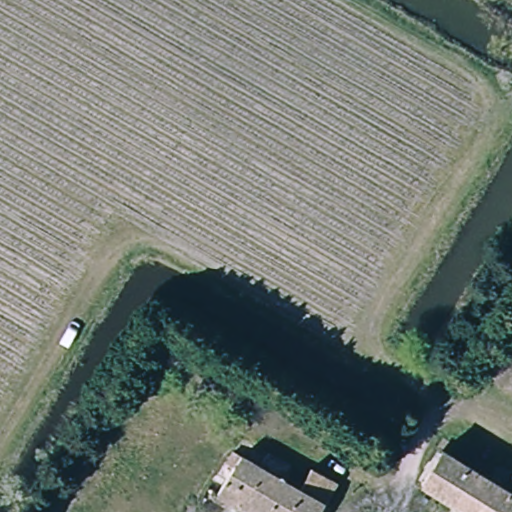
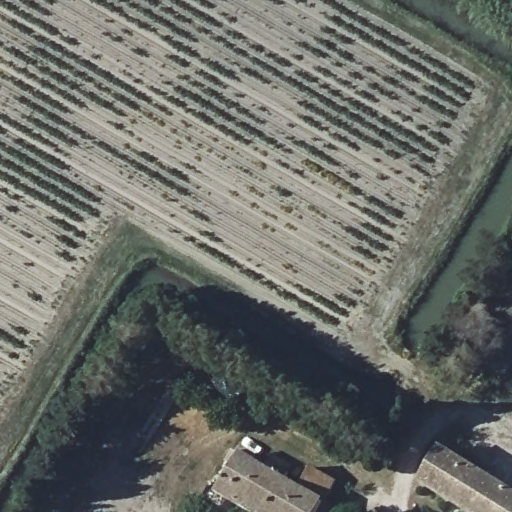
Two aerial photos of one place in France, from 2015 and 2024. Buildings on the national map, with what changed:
unchanged [(469,512),(423,484),(443,449),(512,491),(512,512),(469,512)]
unchanged [(224,455),(234,461),(240,450),(301,484),(313,463),(337,477),(317,512),(260,512),(209,482),(224,455)]

